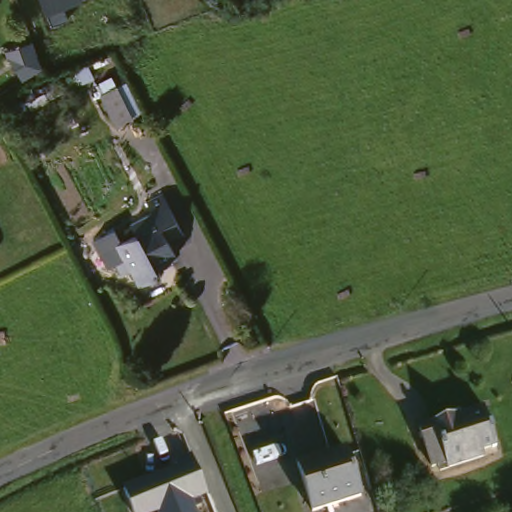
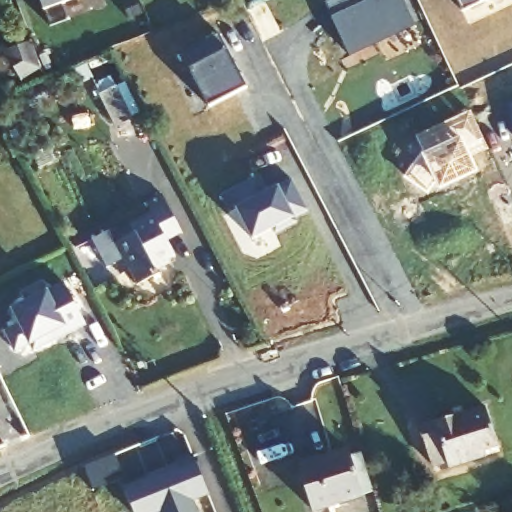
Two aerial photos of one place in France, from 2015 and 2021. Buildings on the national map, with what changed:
unchanged [(72,0),(61,5),(66,19),(50,25),(45,10),(41,0),(72,0)]
new [(361,0),(363,3),(368,0),(406,0),(418,22),(355,55),(328,1),(330,0),(361,0)]
new [(460,0),(488,0),(466,11),(460,0)]
new [(219,34),(248,88),(210,108),(181,54),(219,34)]
unchanged [(43,67),(24,78),(7,50),(33,37),(43,67)]
unchanged [(120,81),(140,116),(126,125),(106,89),(120,81)]
new [(436,178),(427,192),(406,178),(419,160),(425,157),(415,137),(469,110),(483,139),(487,147),(469,157),(476,170),(456,180),(441,188),(436,178)]
unchanged [(188,229),(176,234),(185,255),(169,262),(171,266),(148,279),(141,264),(128,270),(121,255),(130,250),(125,239),(144,229),(139,217),(156,208),(151,196),(166,189),(188,229)]
new [(61,338),(38,350),(34,343),(15,353),(5,334),(20,326),(12,311),(27,303),(23,294),(46,281),(51,291),(68,282),(88,321),(70,330),(60,335),(61,338)]
unchanged [(505,448),(488,453),(489,460),(459,468),(457,461),(435,467),(424,427),(494,408),(505,448)]
unchanged [(350,449),(363,494),(316,507),(303,462),(350,449)]
unchanged [(209,496),(193,502),(197,512),(133,512),(125,487),(178,466),(176,462),(193,456),(209,496)]

